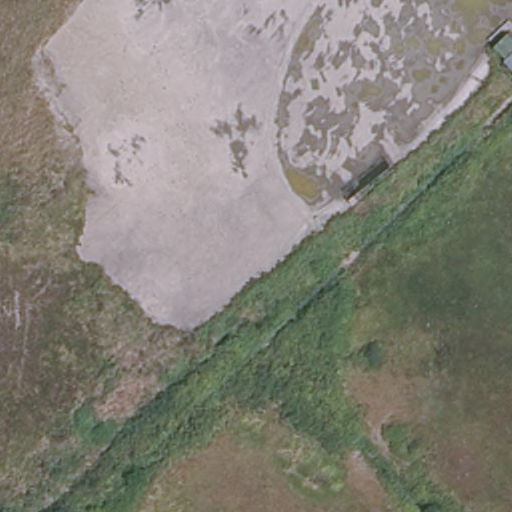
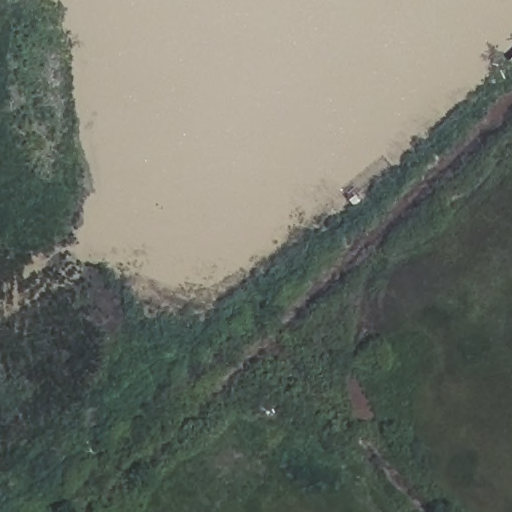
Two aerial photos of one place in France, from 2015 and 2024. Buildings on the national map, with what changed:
unchanged [(509,59),(498,47),(512,34),(512,66),(507,60),(509,59)]

